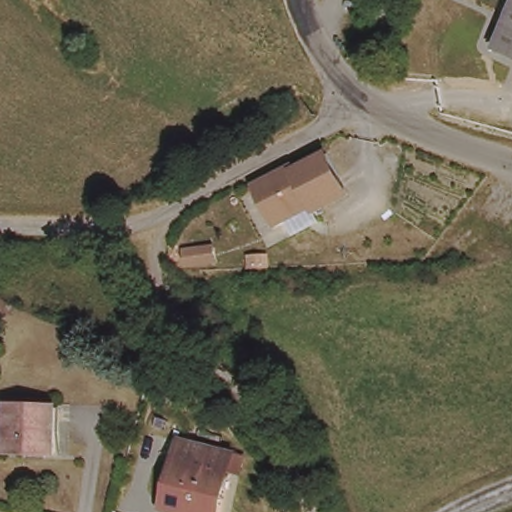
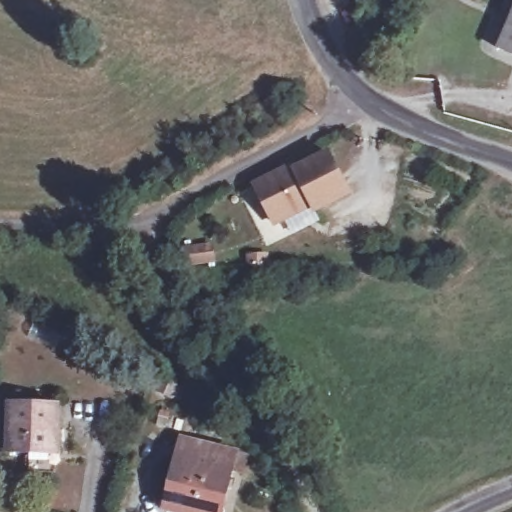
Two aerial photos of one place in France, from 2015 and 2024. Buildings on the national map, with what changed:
unchanged [(495,52),(512,12),(512,59),(495,52)]
unchanged [(350,193),(315,211),(312,205),(275,224),(256,185),(295,166),(296,170),(330,153),(350,193)]
unchanged [(210,261),(180,264),(178,249),(208,246),(210,261)]
unchanged [(172,397),(158,391),(163,381),(177,387),(183,390),(178,400),(172,397)]
unchanged [(56,454),(9,452),(11,405),(58,406),(56,454)]
unchanged [(219,512),(182,512),(168,508),(185,441),(233,453),(219,512)]
unchanged [(329,478),(318,481),(315,471),(325,467),(329,478)]

